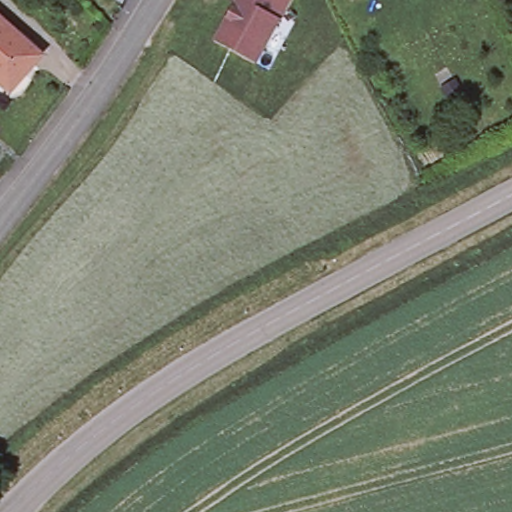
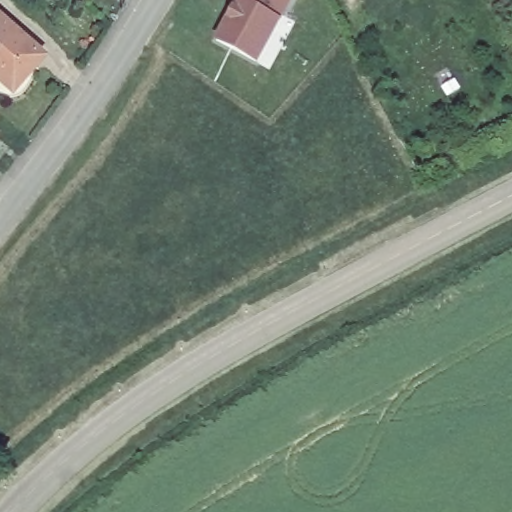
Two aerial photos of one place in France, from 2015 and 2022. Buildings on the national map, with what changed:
unchanged [(215,40),(237,0),(288,0),(255,61),(215,40)]
unchanged [(24,74),(12,64),(2,75),(0,74),(0,11),(46,50),(24,74)]
unchanged [(452,84),(457,93),(444,100),(440,90),(452,84)]

